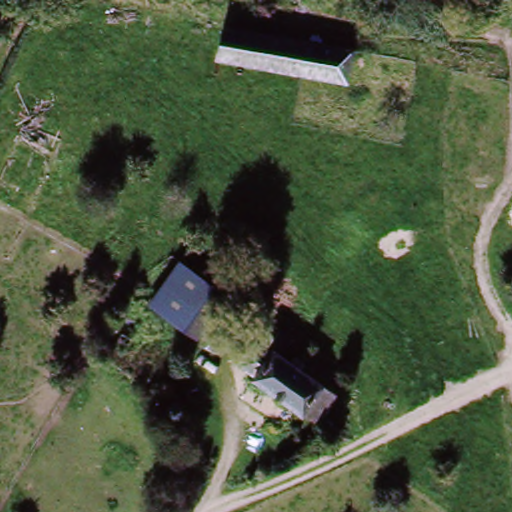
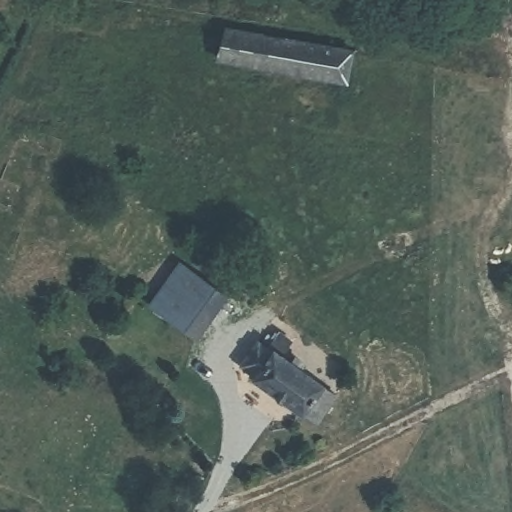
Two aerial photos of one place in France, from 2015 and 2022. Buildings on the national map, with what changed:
unchanged [(215,60),(220,30),(349,50),(344,80),(246,65),(215,60)]
unchanged [(154,298),(183,260),(229,290),(201,332),(154,298)]
unchanged [(318,417),(255,373),(239,361),(255,340),(260,341),(269,328),(278,333),(280,330),(292,337),(282,350),(338,390),(318,417)]

